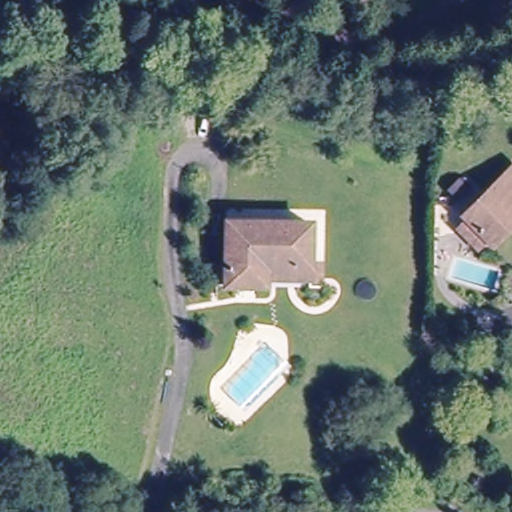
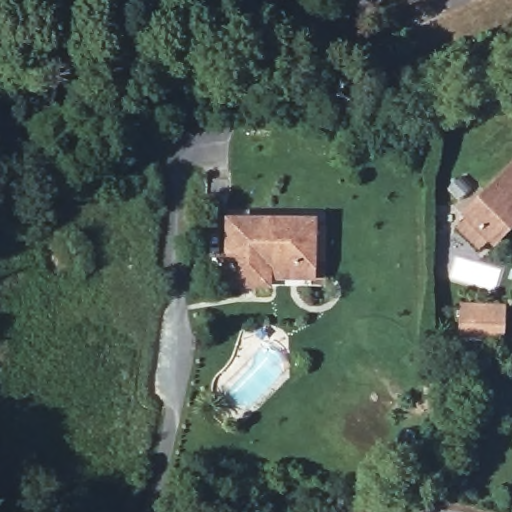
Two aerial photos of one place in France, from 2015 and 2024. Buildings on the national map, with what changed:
unchanged [(456,228),(466,218),(461,213),(512,164),(512,222),(490,244),(485,239),(475,248),(456,228)]
unchanged [(273,282),(221,280),(222,263),(233,263),(233,215),(314,217),(313,261),(313,274),(273,274),(273,282)]
new [(506,305),(504,341),(457,339),(458,303),(506,305)]

